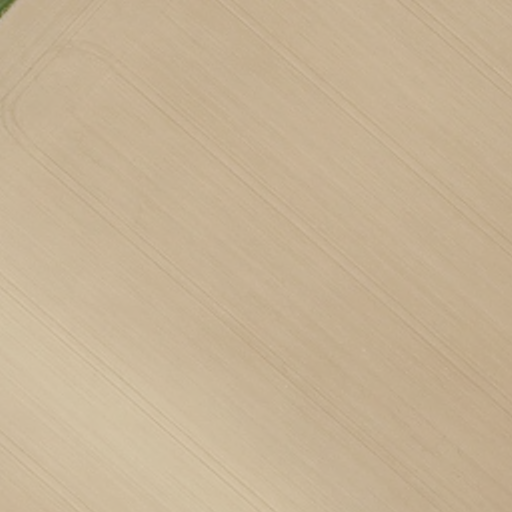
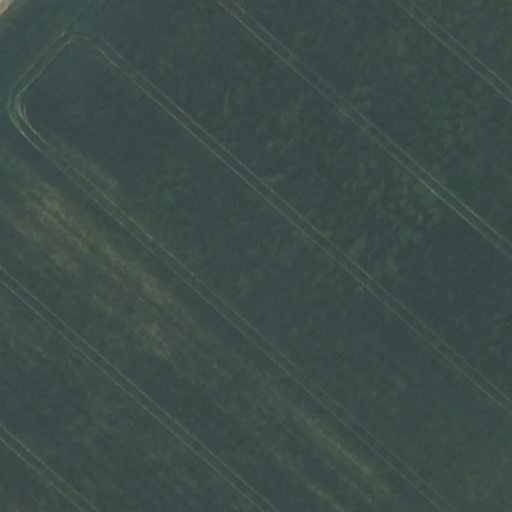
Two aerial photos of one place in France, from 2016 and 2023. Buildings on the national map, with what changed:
[]

